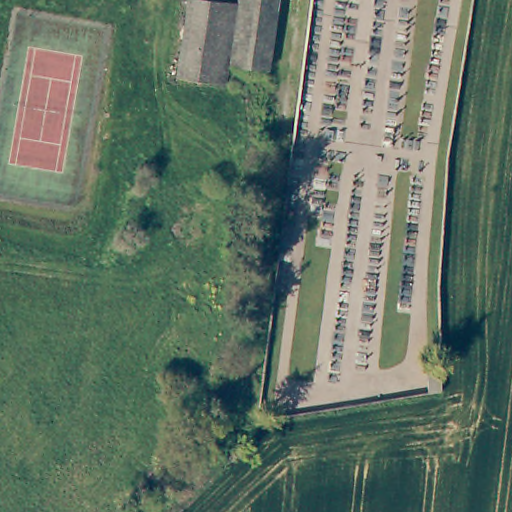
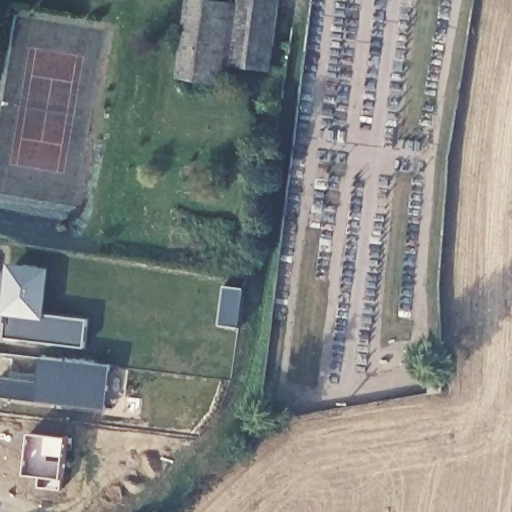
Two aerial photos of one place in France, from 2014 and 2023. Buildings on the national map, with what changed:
unchanged [(176,84),(185,0),(238,0),(233,70),(227,70),(225,90),(176,84)]
unchanged [(241,0),(276,0),(269,72),(236,70),(241,0)]
new [(4,318),(7,318),(9,307),(6,307),(11,263),(44,267),(39,309),(86,314),(83,343),(2,334),(4,318)]
new [(220,286),(240,289),(234,329),(214,325),(220,286)]
new [(35,380),(37,356),(107,364),(102,408),(0,397),(0,377),(35,380)]

